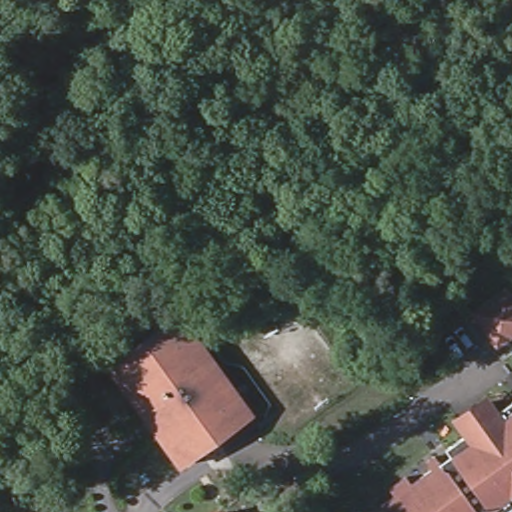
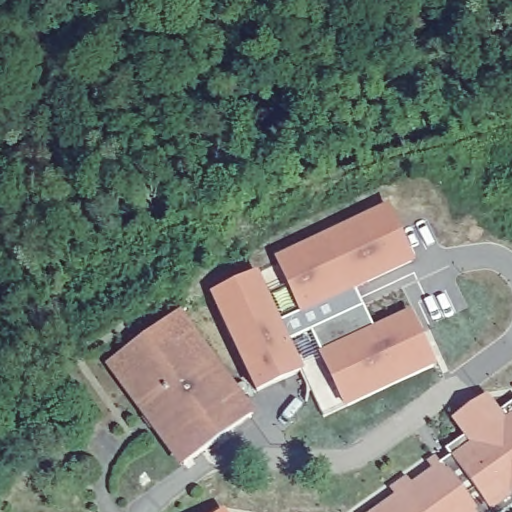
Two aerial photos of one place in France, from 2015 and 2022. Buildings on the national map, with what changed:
new [(417,263),(355,290),(372,327),(411,310),(438,367),(345,411),(318,353),(321,352),(311,331),(290,341),(304,372),(256,394),(209,295),(258,271),(281,322),(300,313),(274,260),(389,206),(417,263)]
demolished [(479,315),(512,293),(512,294),(512,342),(502,348),(479,315)]
unchanged [(225,433),(185,463),(112,360),(177,313),(235,395),(250,416),(225,433)]
unchanged [(450,452),(471,438),(464,427),(493,405),(502,416),(512,409),(512,512),(388,512),(386,508),(444,468),(455,460),(450,452)]

